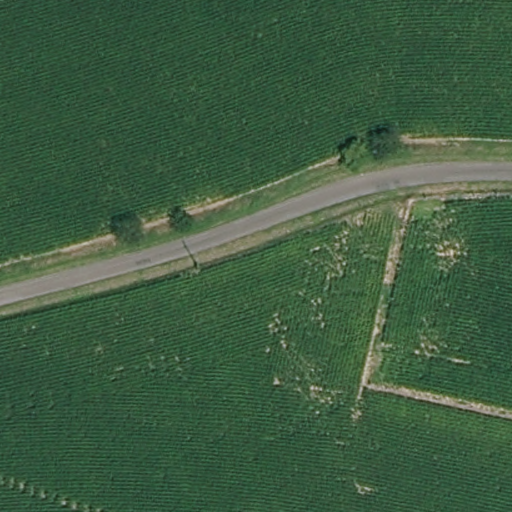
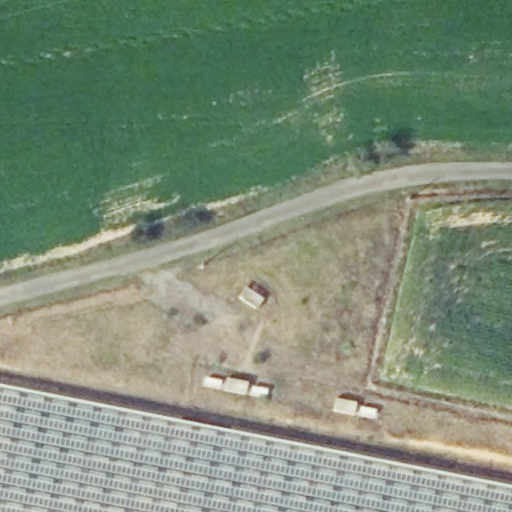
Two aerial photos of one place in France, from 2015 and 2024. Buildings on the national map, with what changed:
new [(512,512),(0,512),(0,386),(512,488),(512,512)]

